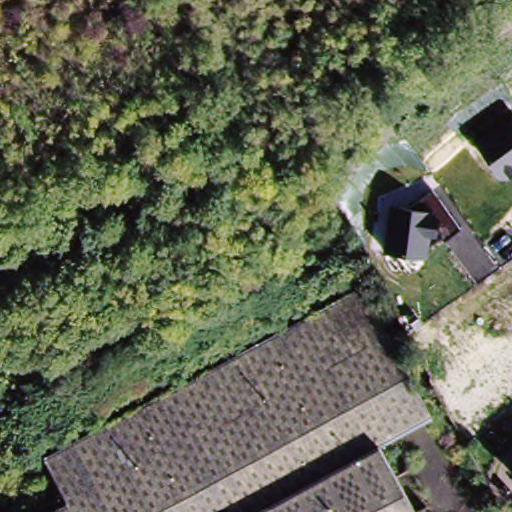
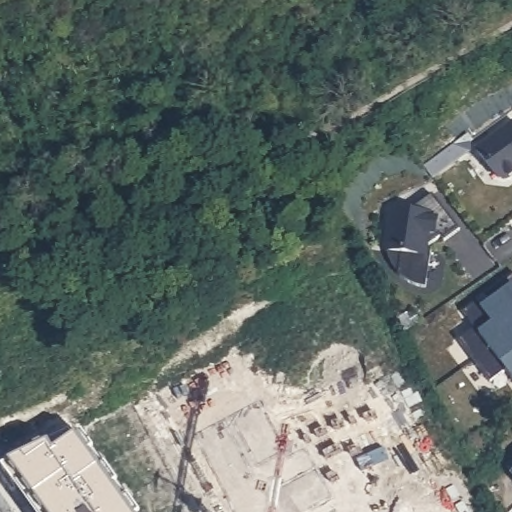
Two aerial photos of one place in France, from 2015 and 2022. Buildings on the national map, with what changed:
unchanged [(497,179),(477,146),(512,119),(512,177),(510,179),(497,179)]
unchanged [(392,207),(411,209),(435,193),(460,230),(430,247),(427,258),(385,251),(392,207)]
new [(489,383),(457,340),(474,327),(462,312),(474,302),(480,310),(487,304),(482,297),(512,273),(512,381),(505,371),(489,383)]
demolished [(417,512),(50,512),(67,502),(44,458),(361,288),(432,417),(380,446),(408,496),(417,512)]
unchanged [(512,477),(512,486),(507,482),(512,477)]
unchanged [(420,489),(428,506),(417,512),(408,496),(420,489)]

